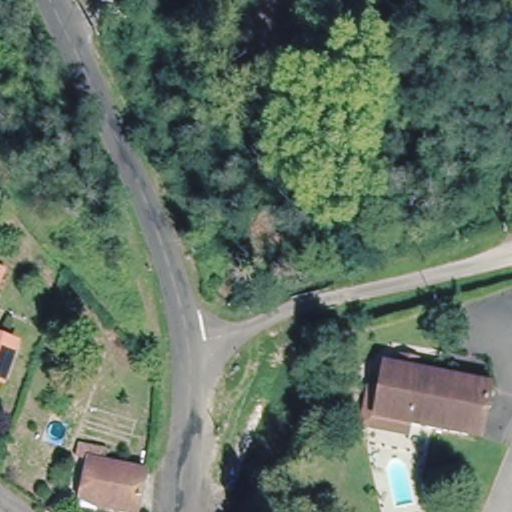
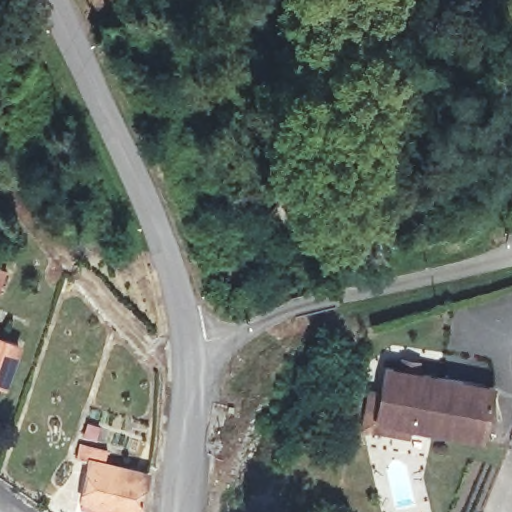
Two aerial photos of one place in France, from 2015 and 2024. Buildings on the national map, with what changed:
unchanged [(0,337),(16,342),(8,380),(0,378),(0,337)]
unchanged [(375,417),(378,388),(380,367),(487,379),(484,426),(406,419),(375,417)]
unchanged [(360,430),(365,387),(378,388),(375,417),(406,419),(405,432),(360,430)]
unchanged [(126,512),(87,496),(101,459),(86,453),(91,442),(118,452),(114,462),(159,478),(148,512),(126,512)]

